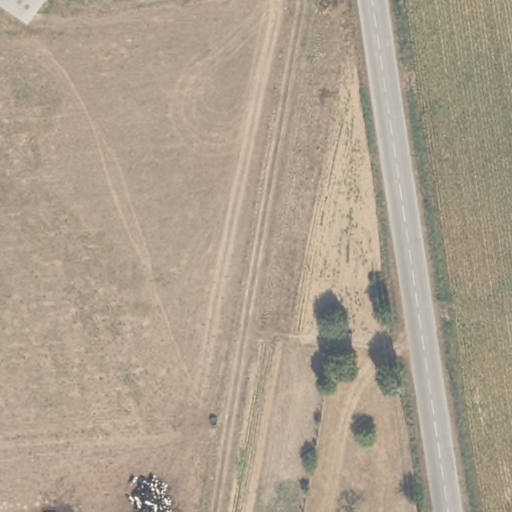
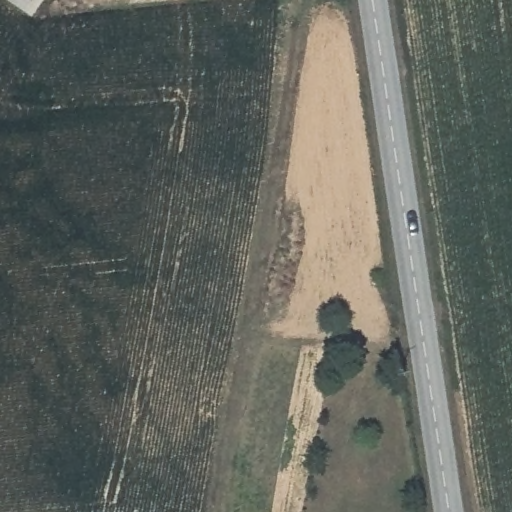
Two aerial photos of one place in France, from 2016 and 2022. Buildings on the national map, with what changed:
unchanged [(15,0),(34,0),(28,10),(15,0)]

